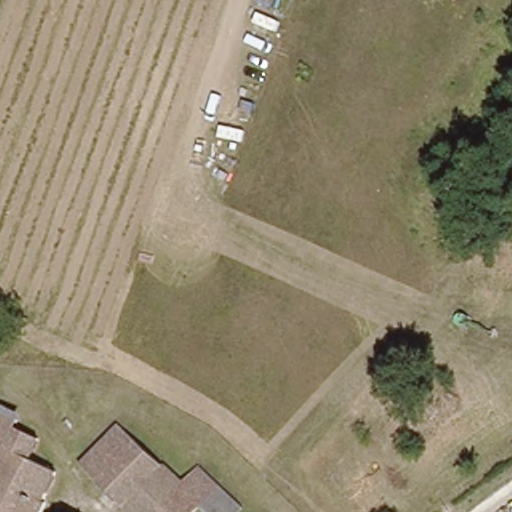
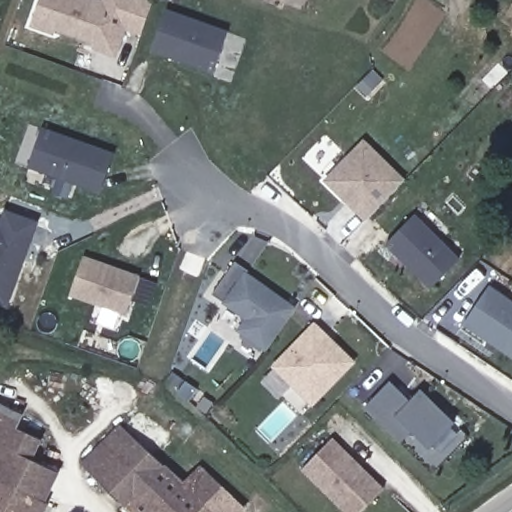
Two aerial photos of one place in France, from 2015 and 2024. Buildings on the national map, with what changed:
new [(115,54),(95,46),(97,40),(55,25),(53,31),(30,23),(39,0),(100,0),(105,1),(105,0),(149,0),(154,1),(142,32),(126,26),(115,54)]
new [(209,70),(152,49),(166,9),(224,30),(209,70)]
new [(367,94),(357,84),(367,75),(377,84),(367,94)]
new [(100,190),(29,164),(42,126),(114,152),(100,190)]
new [(365,220),(324,179),(363,140),(404,180),(365,220)]
new [(6,303),(0,300),(0,223),(5,209),(36,220),(6,303)]
new [(458,259),(430,288),(385,244),(413,215),(458,259)]
new [(125,310),(70,290),(83,253),(139,273),(125,310)]
new [(264,348),(236,329),(245,318),(222,302),(244,272),(293,307),(264,348)]
new [(487,287),(512,304),(512,358),(461,324),(487,287)]
new [(310,404),(271,366),(313,324),(352,362),(310,404)]
new [(192,385),(182,394),(165,377),(168,368),(192,385)]
new [(429,448),(411,430),(400,442),(364,407),(390,381),(410,401),(420,390),(453,422),(429,448)]
unchanged [(25,416),(20,431),(36,439),(28,461),(54,474),(41,502),(45,504),(40,512),(0,512),(0,403),(25,416)]
new [(457,447),(443,433),(453,422),(468,436),(457,447)]
unchanged [(243,512),(202,512),(197,508),(194,512),(128,512),(108,493),(82,469),(120,429),(180,483),(196,464),(223,488),(246,509),(243,512)]
new [(338,505),(300,467),(329,437),(381,487),(357,511),(356,512),(345,512),(338,505)]

